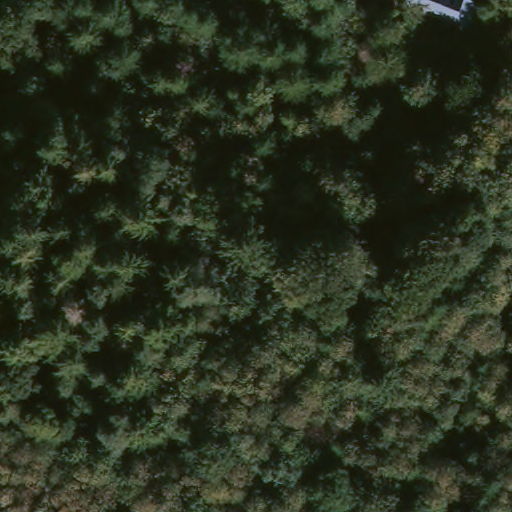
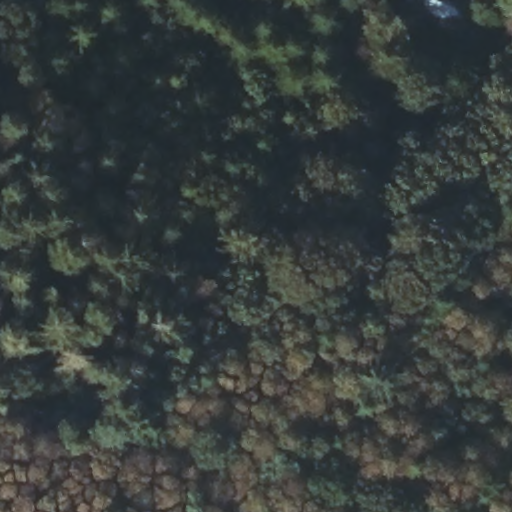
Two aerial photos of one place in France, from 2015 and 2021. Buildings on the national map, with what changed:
unchanged [(410,0),(461,0),(478,12),(462,35),(410,0)]

